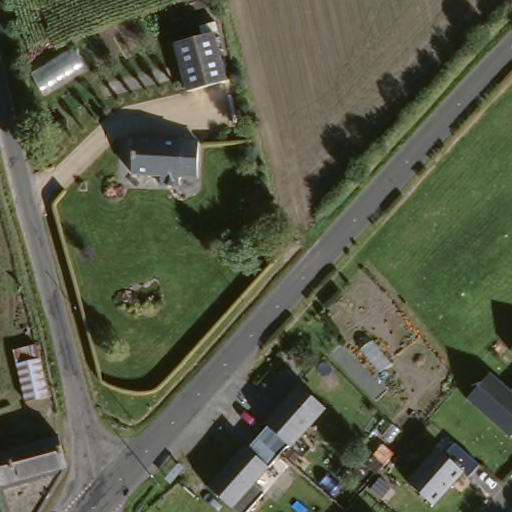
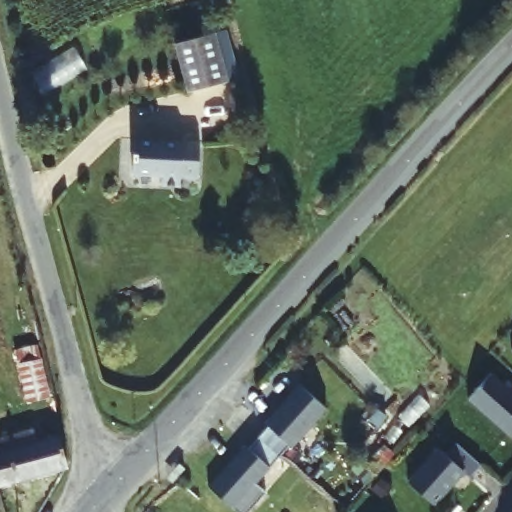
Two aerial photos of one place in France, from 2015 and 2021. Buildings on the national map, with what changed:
unchanged [(227,80),(187,91),(174,39),(214,28),(227,80)]
unchanged [(198,174),(177,173),(176,185),(155,184),(155,173),(127,172),(128,134),(200,137),(198,174)]
unchanged [(512,349),(512,350),(511,349),(512,349)]
unchanged [(52,399),(30,402),(18,356),(40,352),(52,399)]
unchanged [(467,397),(490,371),(510,391),(512,390),(512,434),(510,437),(467,397)]
unchanged [(243,512),(238,512),(207,481),(235,451),(240,457),(276,419),(270,413),(299,383),(325,408),(270,462),(282,473),(243,512)]
unchanged [(72,464),(0,485),(0,428),(17,424),(37,419),(41,433),(63,428),(72,464)]
unchanged [(436,504),(410,479),(441,445),(450,453),(460,441),(483,463),(471,476),(466,471),(436,504)]

